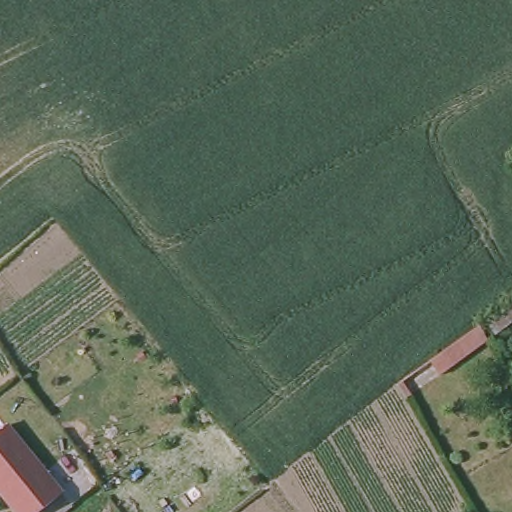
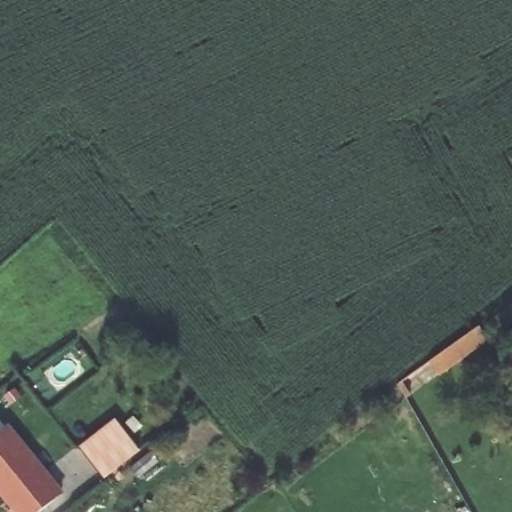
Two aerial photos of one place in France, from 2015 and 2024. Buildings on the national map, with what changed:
unchanged [(492,313),(512,301),(512,317),(497,326),(492,313)]
unchanged [(479,316),(488,331),(444,366),(433,353),(479,316)]
unchanged [(0,429),(10,420),(65,490),(39,512),(16,512),(0,492),(0,429)]
new [(141,449),(105,479),(80,448),(116,420),(141,449)]

